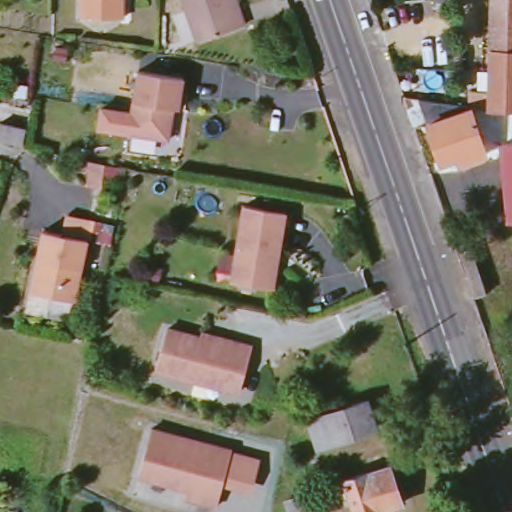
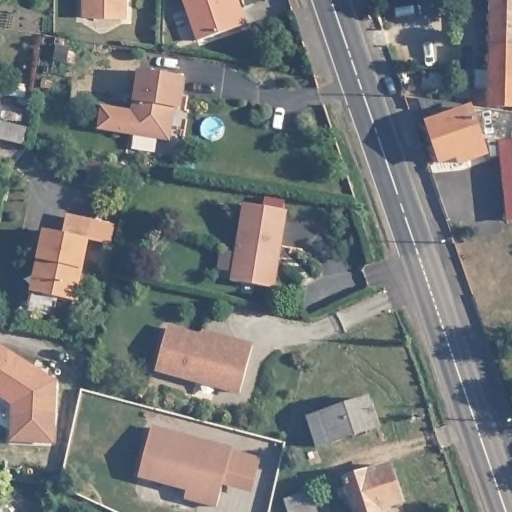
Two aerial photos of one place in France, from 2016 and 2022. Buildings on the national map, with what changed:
unchanged [(74,13),(74,0),(116,0),(116,15),(74,13)]
unchanged [(176,0),(229,0),(233,9),(239,26),(191,42),(176,0)]
unchanged [(493,0),(512,0),(512,108),(491,108),(493,0)]
unchanged [(164,136),(96,124),(99,102),(127,107),(134,65),(179,73),(174,102),(169,102),(168,115),(164,136)]
unchanged [(470,110),(486,158),(460,167),(458,161),(441,166),(420,103),(470,110)]
unchanged [(2,125),(27,131),(24,147),(6,143),(0,142),(0,135),(2,125)]
unchanged [(505,216),(496,139),(512,138),(512,215),(505,216)]
unchanged [(122,178),(81,169),(83,160),(114,166),(124,168),(122,178)]
unchanged [(245,209),(286,216),(280,251),(278,250),(272,292),(232,285),(233,279),(218,276),(221,256),(237,259),(245,209)]
unchanged [(25,293),(29,271),(33,272),(36,263),(31,261),(38,232),(58,237),(63,217),(87,223),(82,242),(68,303),(25,293)]
unchanged [(249,394),(146,368),(156,328),(190,336),(191,331),(239,342),(260,348),(249,394)]
new [(11,440),(12,403),(0,397),(0,346),(58,383),(55,443),(11,440)]
unchanged [(365,396),(373,425),(315,444),(305,415),(365,396)]
unchanged [(188,492),(140,480),(152,431),(232,451),(218,508),(198,503),(186,500),(188,492)]
unchanged [(385,462),(397,498),(374,505),(376,512),(352,512),(340,477),(385,462)]
unchanged [(301,490),(308,512),(282,512),(277,497),(301,490)]

